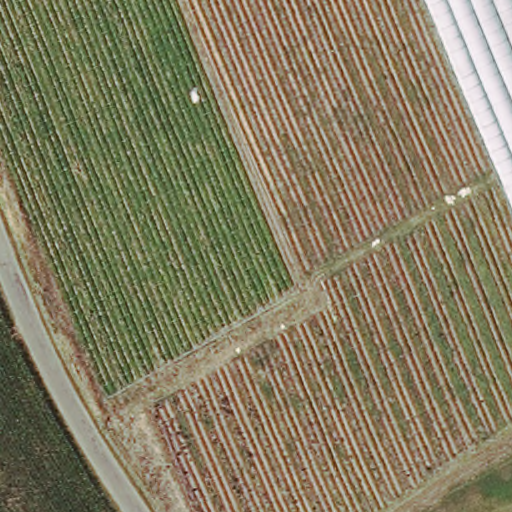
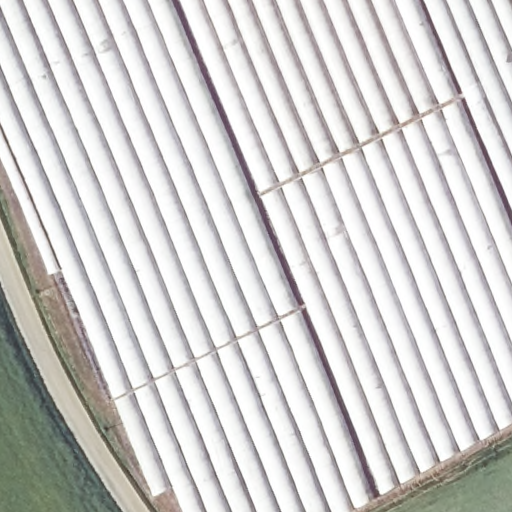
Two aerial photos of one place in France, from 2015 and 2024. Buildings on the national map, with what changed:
new [(350,512),(200,512),(199,509),(192,512),(182,512),(141,420),(125,426),(114,399),(77,309),(60,270),(21,182),(5,146),(0,147),(0,0),(512,0),(512,424),(350,512)]
demolished [(48,64),(18,0),(176,0),(299,296),(192,355),(67,56),(48,64)]
demolished [(311,289),(193,0),(512,0),(512,423),(379,512),(195,512),(149,409),(322,317),(311,289)]
demolished [(0,327),(1,328),(0,328),(0,327)]
demolished [(0,345),(10,342),(93,512),(0,512),(0,345)]

